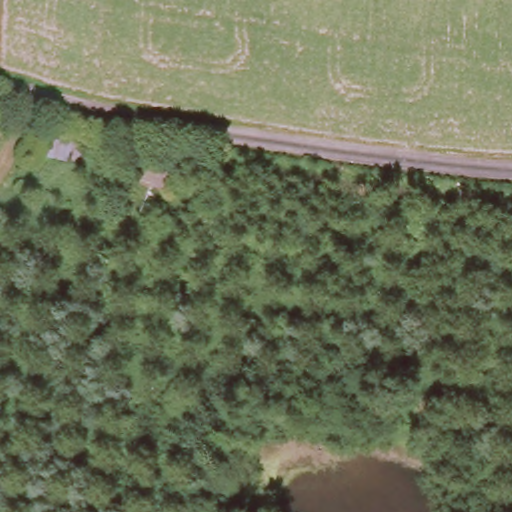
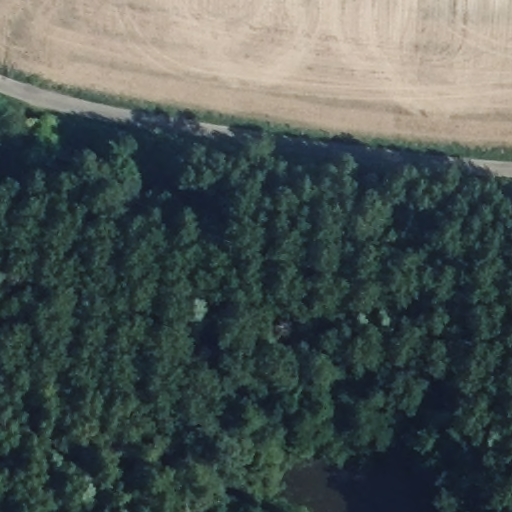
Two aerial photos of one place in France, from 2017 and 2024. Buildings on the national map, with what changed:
[]

